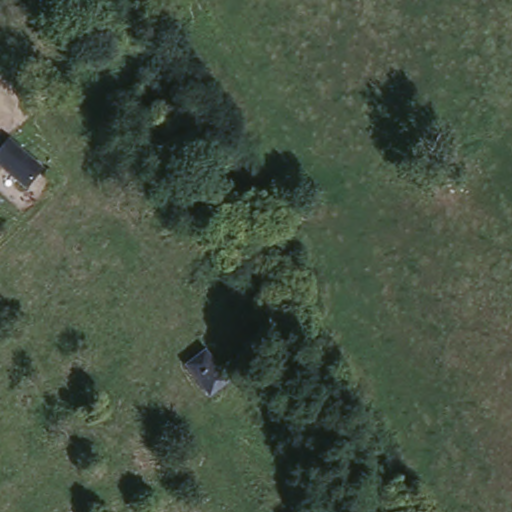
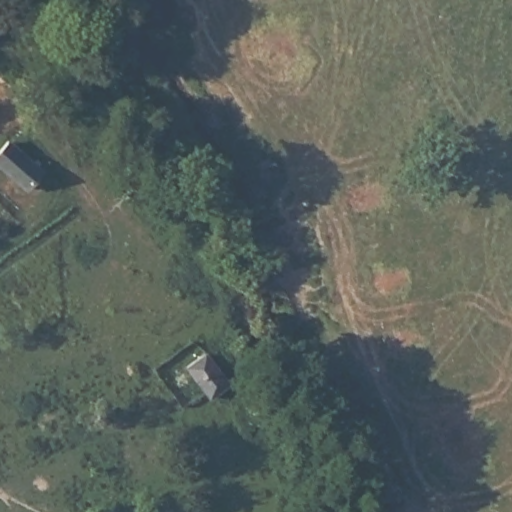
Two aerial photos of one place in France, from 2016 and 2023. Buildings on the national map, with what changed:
unchanged [(0,158),(0,134),(4,130),(46,166),(28,182),(0,158)]
unchanged [(183,355),(205,341),(229,382),(205,396),(183,355)]

